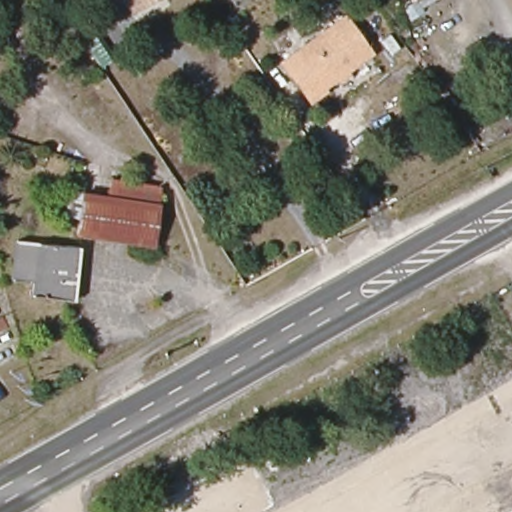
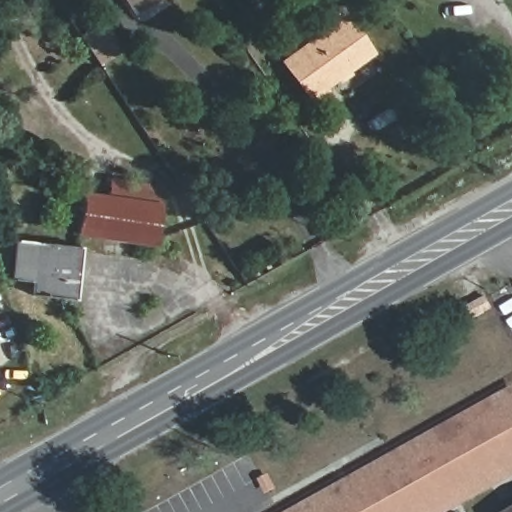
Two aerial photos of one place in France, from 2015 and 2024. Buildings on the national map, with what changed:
unchanged [(128,0),(151,0),(136,10),(128,0)]
unchanged [(371,52),(310,97),(283,61),(346,16),(371,52)]
new [(96,25),(115,52),(101,61),(82,34),(96,25)]
unchanged [(111,180),(163,186),(155,250),(77,238),(79,219),(64,217),(69,190),(82,192),(109,195),(111,180)]
unchanged [(17,240),(79,247),(74,296),(33,292),(34,277),(15,274),(17,240)]
new [(450,512),(285,512),(512,386),(512,477),(450,512)]

